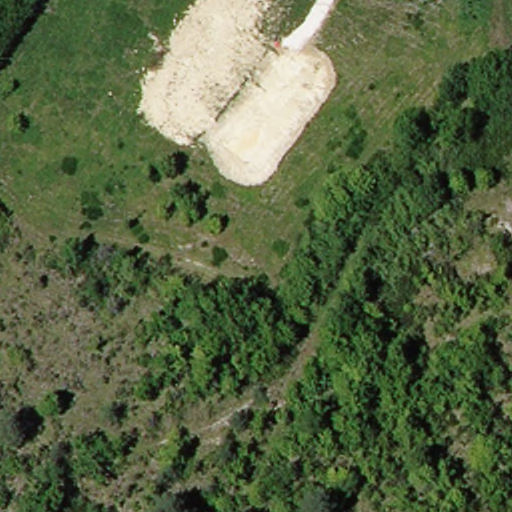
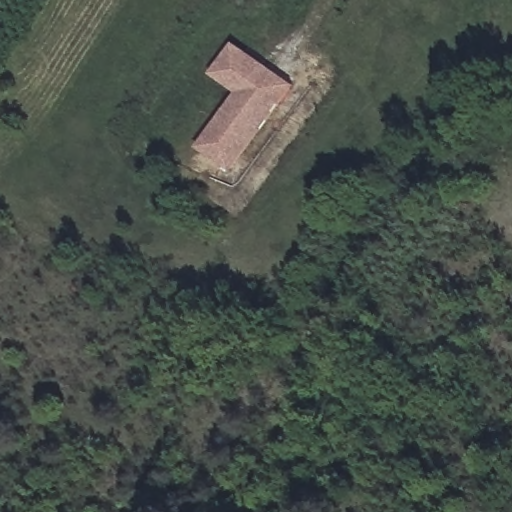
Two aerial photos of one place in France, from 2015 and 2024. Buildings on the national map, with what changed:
new [(218,122),(238,94),(212,76),(234,45),(266,69),(270,72),(289,86),(228,171),(215,162),(198,149),(218,122),(234,134),(218,122)]

